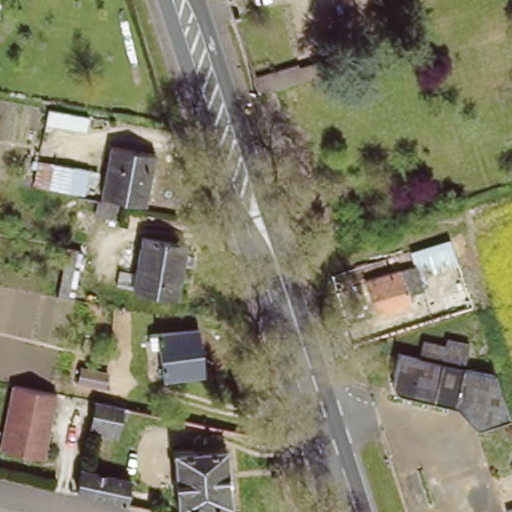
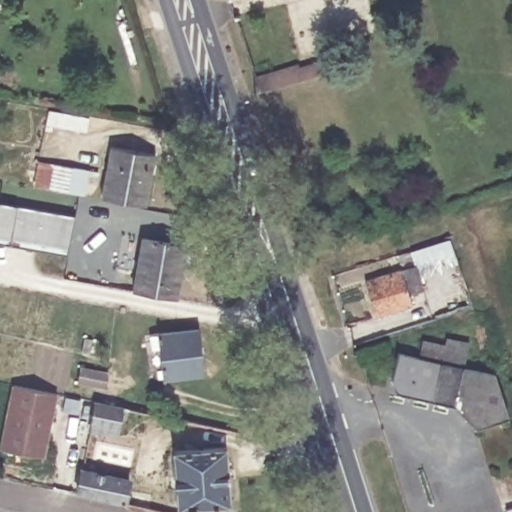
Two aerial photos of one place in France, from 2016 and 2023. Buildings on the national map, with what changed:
unchanged [(247,2),(247,0),(255,0),(247,2)]
unchanged [(252,82),(296,69),(297,74),(321,67),(323,77),(300,84),(256,96),(252,82)]
unchanged [(103,198),(111,149),(155,158),(146,206),(103,198)]
unchanged [(35,187),(40,160),(91,168),(86,192),(35,187)]
new [(65,255),(0,243),(0,202),(73,216),(65,255)]
unchanged [(415,268),(413,248),(453,237),(459,268),(424,281),(430,298),(375,318),(368,279),(415,268)]
unchanged [(133,291),(143,240),(186,249),(177,298),(133,291)]
unchanged [(203,376),(161,380),(156,337),(198,333),(203,376)]
unchanged [(457,406),(388,388),(397,352),(416,355),(421,339),(441,344),(444,336),(470,341),(464,365),(495,375),(508,418),(475,427),(457,406)]
unchanged [(60,394),(46,457),(3,449),(17,386),(60,394)]
unchanged [(87,426),(93,397),(124,403),(122,413),(116,411),(113,426),(107,424),(106,429),(87,426)]
unchanged [(173,506),(170,450),(223,447),(225,503),(173,506)]
unchanged [(75,494),(80,470),(126,480),(125,489),(148,494),(146,509),(75,494)]

